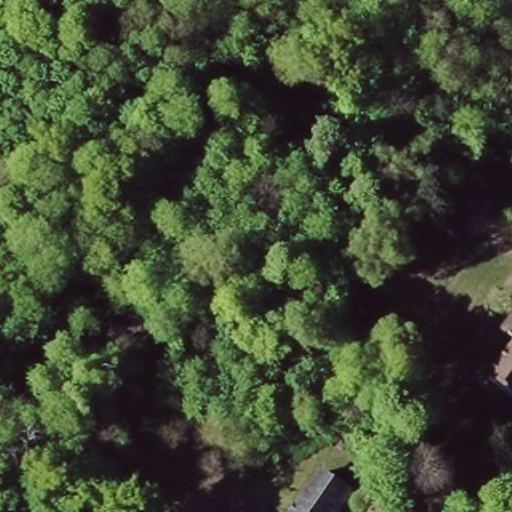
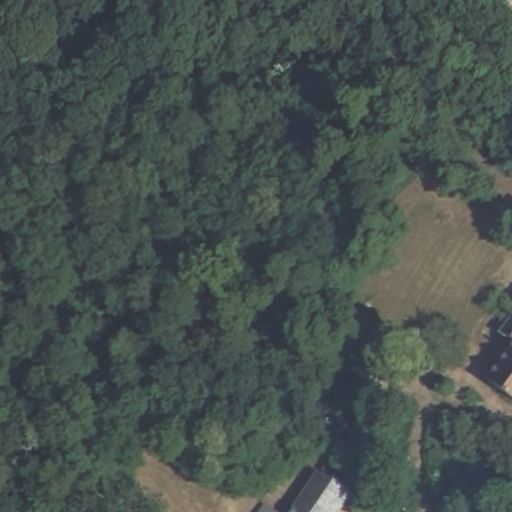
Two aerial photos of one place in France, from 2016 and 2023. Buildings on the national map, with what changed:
unchanged [(512,323),(512,334),(507,330),(512,323)]
unchanged [(512,354),(512,388),(495,375),(512,354)]

